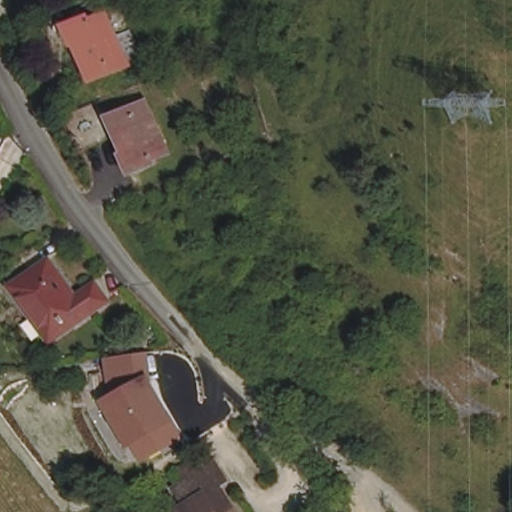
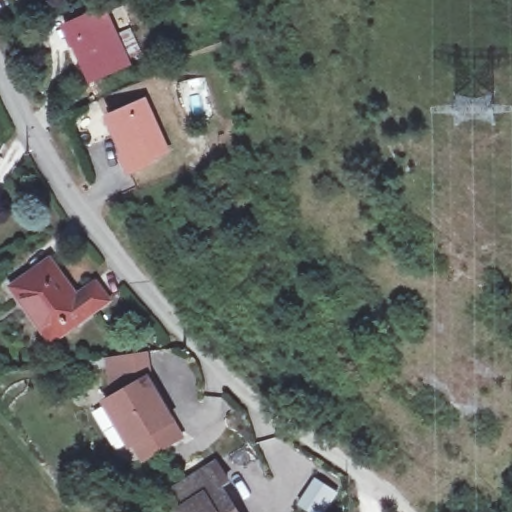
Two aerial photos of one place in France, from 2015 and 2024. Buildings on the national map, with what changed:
unchanged [(7,0),(39,0),(41,4),(15,17),(7,0)]
unchanged [(89,29),(93,34),(110,26),(135,66),(104,87),(85,59),(79,62),(66,44),(89,29)]
unchanged [(142,100),(168,151),(150,160),(153,165),(128,178),(118,157),(125,153),(108,117),(142,100)]
unchanged [(102,300),(50,338),(10,287),(28,272),(31,275),(45,263),(55,277),(53,279),(68,298),(76,293),(81,288),(88,283),(102,300)]
unchanged [(158,392),(175,422),(132,449),(103,402),(112,396),(106,356),(150,352),(158,392)]
unchanged [(183,498),(191,494),(181,476),(217,455),(227,475),(220,480),(238,512),(179,512),(175,505),(183,498)]

